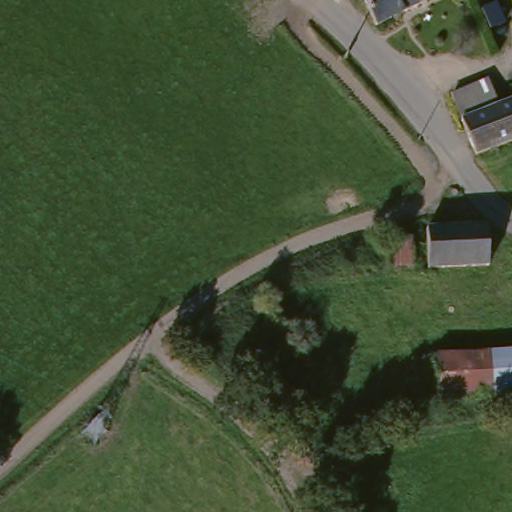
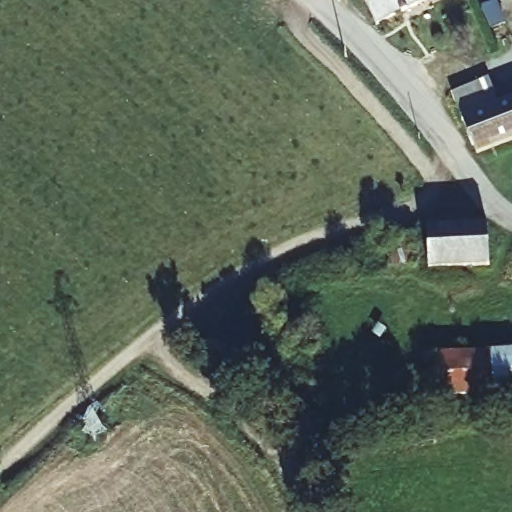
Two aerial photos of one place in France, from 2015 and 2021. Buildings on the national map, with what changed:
unchanged [(377,26),(364,0),(429,0),(377,26)]
unchanged [(477,154),(462,120),(455,97),(489,82),(500,107),(512,102),(512,141),(477,154)]
unchanged [(487,226),(489,266),(428,268),(427,228),(487,226)]
unchanged [(441,360),(512,356),(512,398),(443,402),(441,402),(441,400),(440,376),(438,360),(441,360)]

